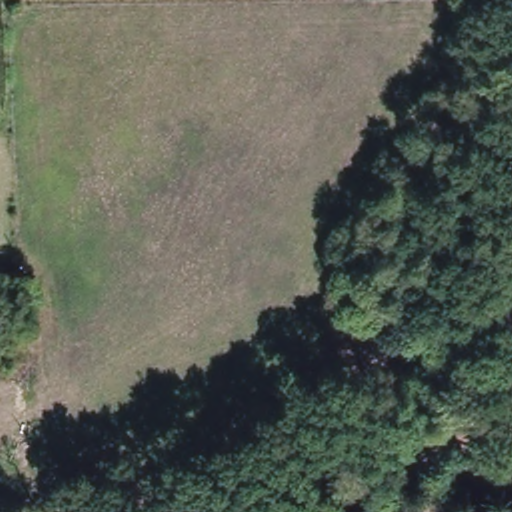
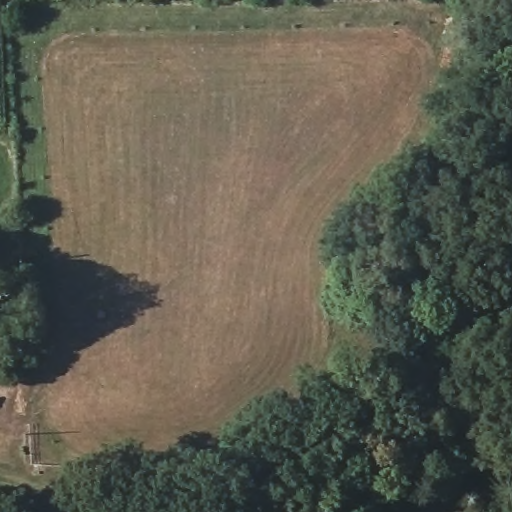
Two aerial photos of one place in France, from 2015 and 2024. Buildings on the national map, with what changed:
unchanged [(28,408),(0,406),(0,380),(30,383),(28,408)]

